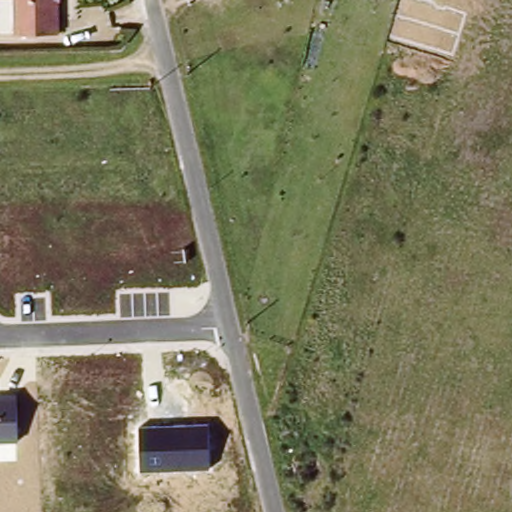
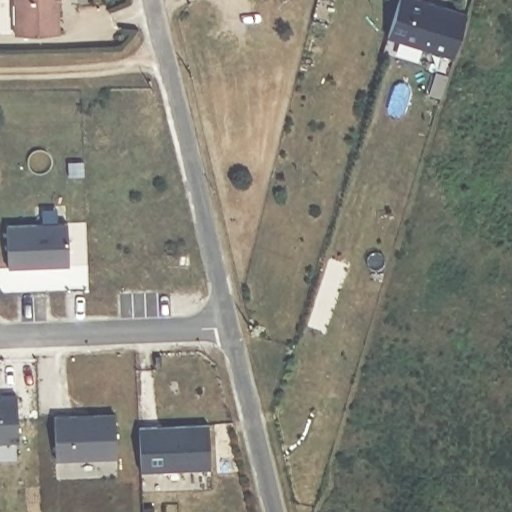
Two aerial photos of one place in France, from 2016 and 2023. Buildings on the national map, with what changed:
unchanged [(62,0),(62,33),(20,33),(19,0),(62,0)]
unchanged [(387,38),(398,0),(425,0),(467,14),(454,59),(387,38)]
new [(70,266),(8,269),(6,224),(67,222),(70,266)]
unchanged [(17,441),(0,442),(0,397),(15,397),(17,441)]
new [(112,413),(115,455),(53,459),(52,417),(112,413)]
unchanged [(207,425),(208,469),(142,471),(138,428),(207,425)]

